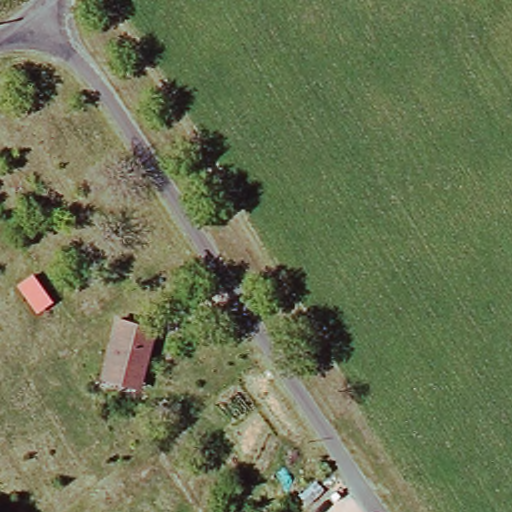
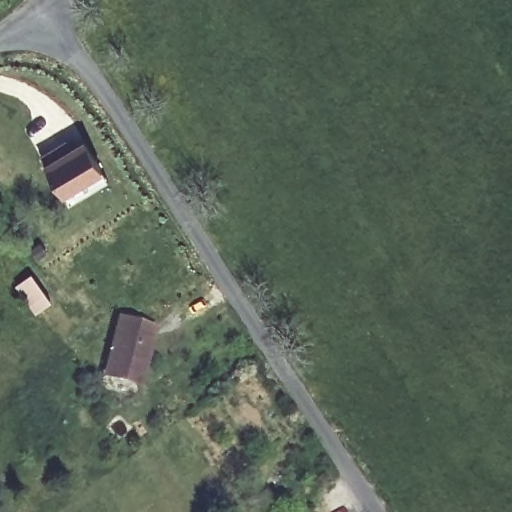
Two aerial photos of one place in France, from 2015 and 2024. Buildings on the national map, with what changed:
new [(72,136),(74,140),(82,135),(104,172),(63,195),(39,152),(72,136)]
unchanged [(104,361),(124,313),(156,327),(137,374),(133,382),(101,369),(104,361)]

